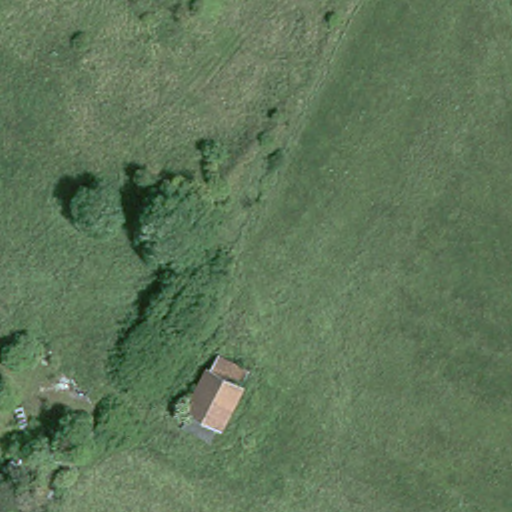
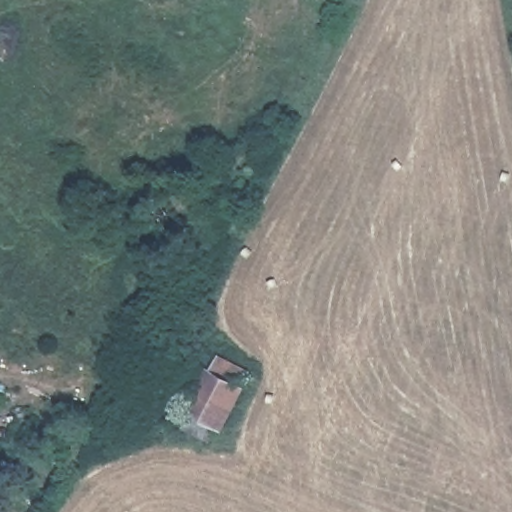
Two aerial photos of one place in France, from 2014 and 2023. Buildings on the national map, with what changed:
unchanged [(219,358),(247,373),(213,440),(184,426),(219,358)]

